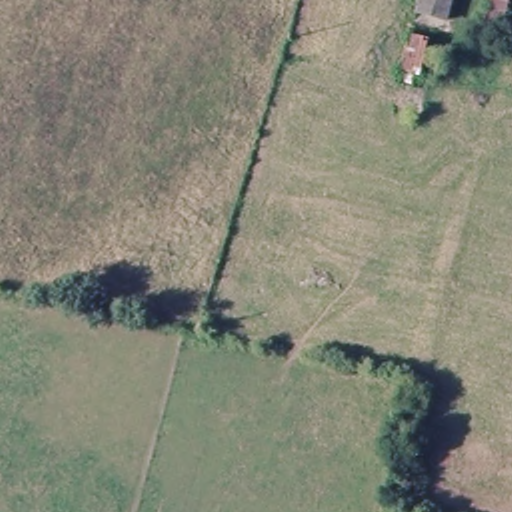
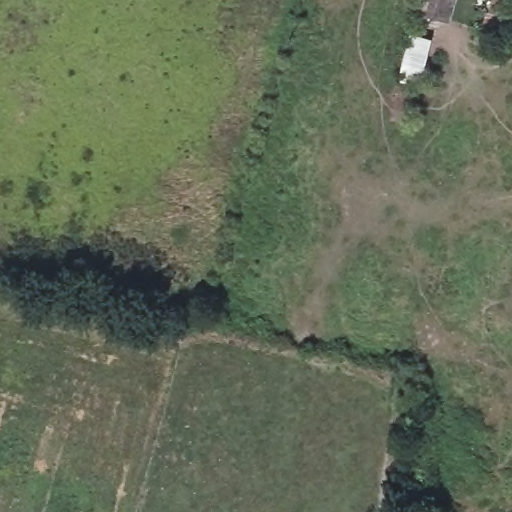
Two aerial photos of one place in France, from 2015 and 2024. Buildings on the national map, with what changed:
unchanged [(447,18),(419,10),(421,0),(451,0),(447,18)]
unchanged [(498,29),(484,25),(491,0),(507,0),(498,29)]

